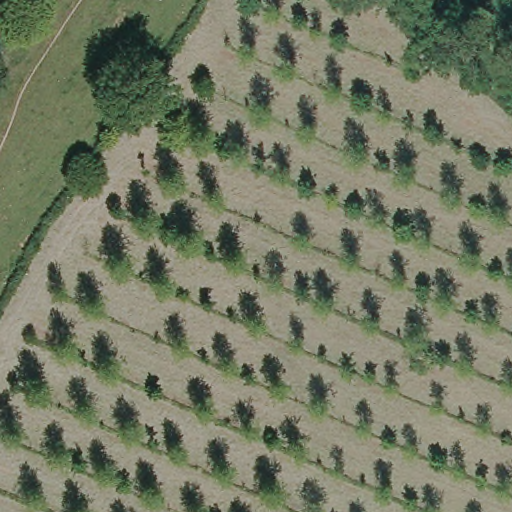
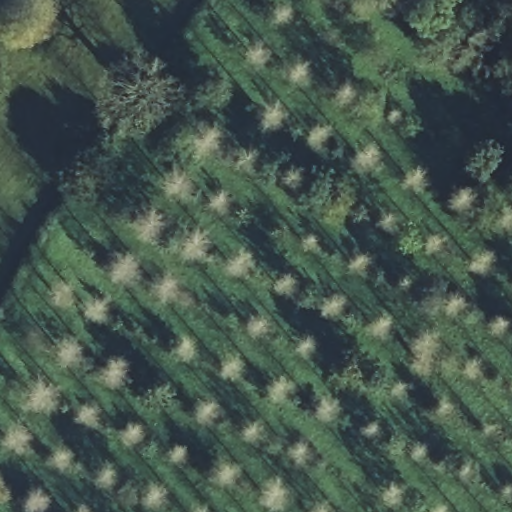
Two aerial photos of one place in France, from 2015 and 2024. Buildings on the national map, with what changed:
[]

